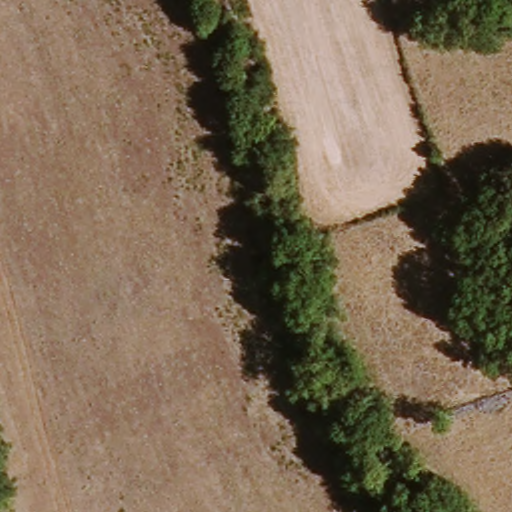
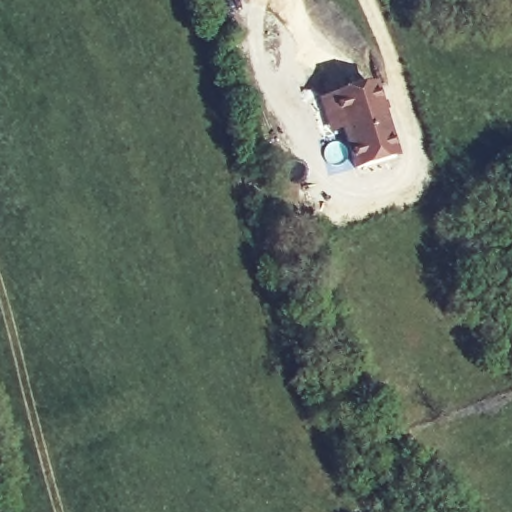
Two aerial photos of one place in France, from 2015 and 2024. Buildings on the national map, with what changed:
new [(375,86),(398,158),(356,169),(333,100),(375,86)]

